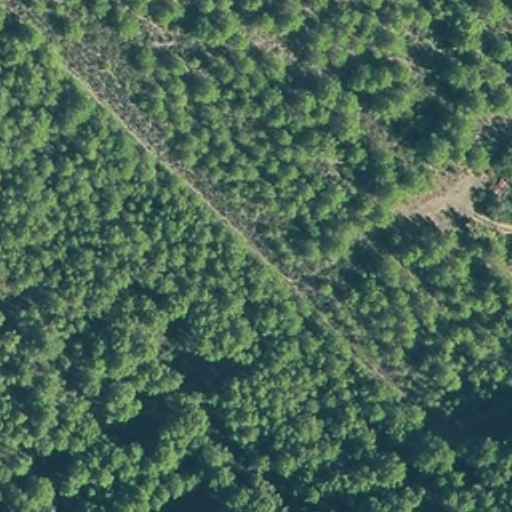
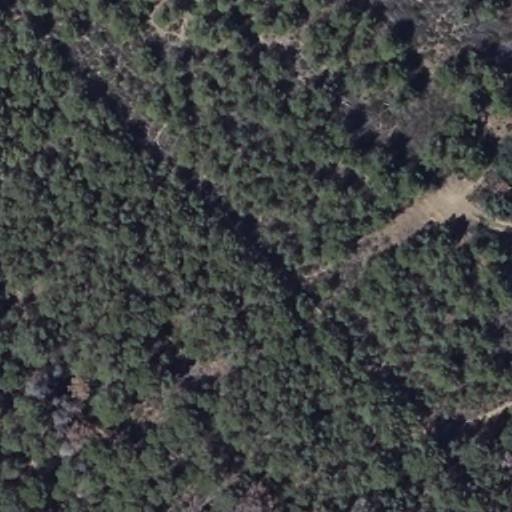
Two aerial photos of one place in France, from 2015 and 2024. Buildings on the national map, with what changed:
unchanged [(512,190),(508,205),(487,201),(490,187),(512,190)]

